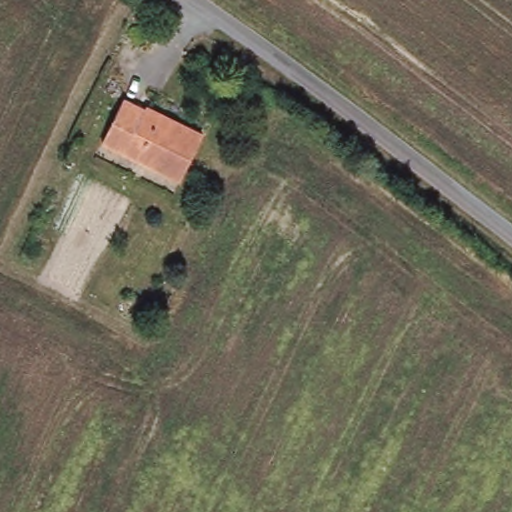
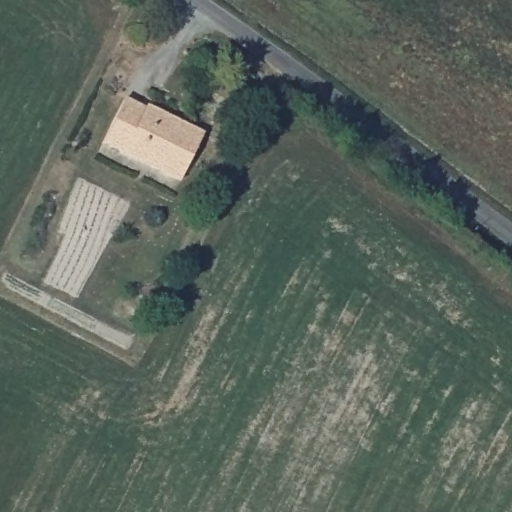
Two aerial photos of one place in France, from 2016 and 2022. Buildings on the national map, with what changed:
unchanged [(139,108),(143,103),(199,134),(175,181),(99,140),(119,98),(139,108)]

